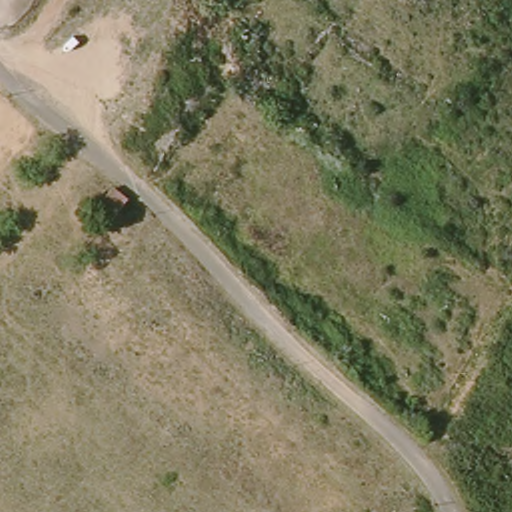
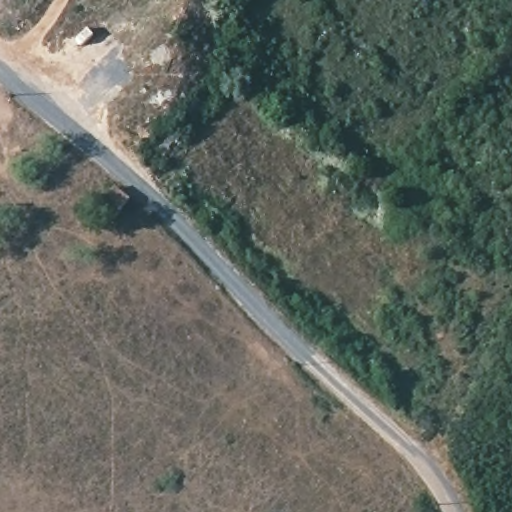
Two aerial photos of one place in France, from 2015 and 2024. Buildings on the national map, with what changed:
unchanged [(101,207),(117,188),(132,201),(115,219),(101,207)]

